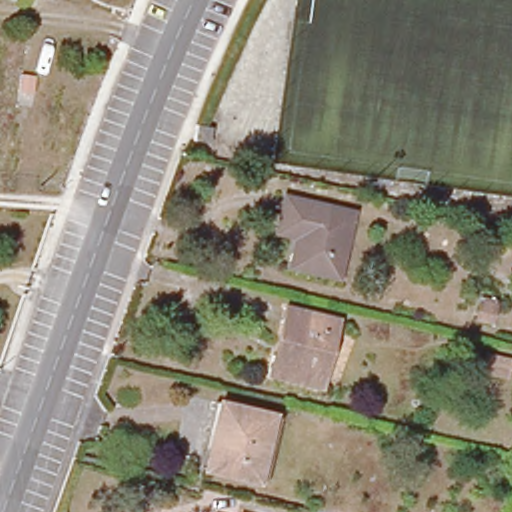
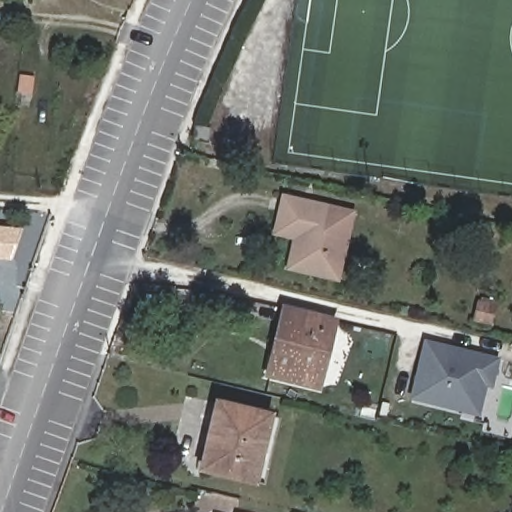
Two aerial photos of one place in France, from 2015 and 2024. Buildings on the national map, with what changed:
unchanged [(206,146),(192,142),(195,126),(209,129),(206,146)]
unchanged [(291,237),(270,232),(278,197),(346,213),(331,279),(293,271),(284,269),(291,237)]
new [(22,228),(11,261),(0,260),(0,226),(22,228)]
unchanged [(285,325),(279,325),(282,308),(335,321),(318,388),(266,376),(270,359),(277,361),(285,325)]
new [(501,358),(493,390),(487,389),(480,418),(411,400),(426,339),(501,358)]
demolished [(483,352),(505,357),(501,375),(479,370),(483,352)]
unchanged [(217,403),(269,415),(253,480),(201,468),(217,403)]

